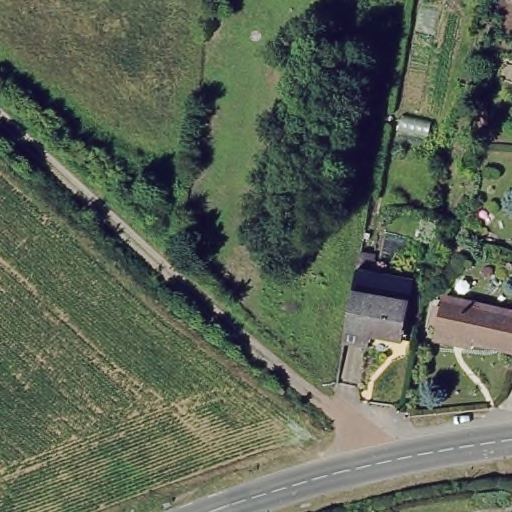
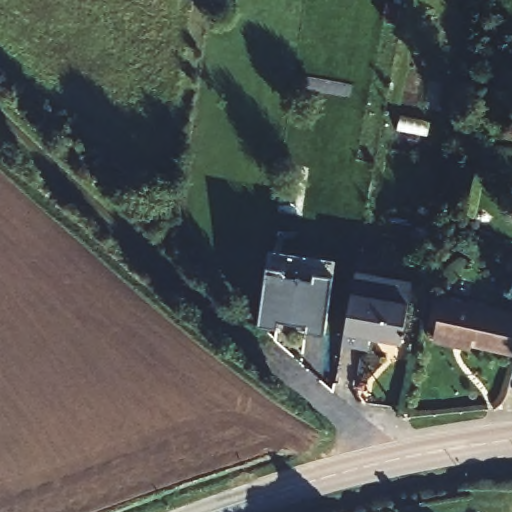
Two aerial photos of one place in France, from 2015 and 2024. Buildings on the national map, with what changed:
new [(336,258),(324,338),(298,334),(296,345),(274,341),(276,326),(259,323),(270,248),(336,258)]
unchanged [(356,251),(371,255),(369,277),(409,282),(402,338),(343,328),(356,251)]
unchanged [(442,294),(512,305),(512,334),(511,340),(454,332),(452,340),(435,337),(442,294)]

